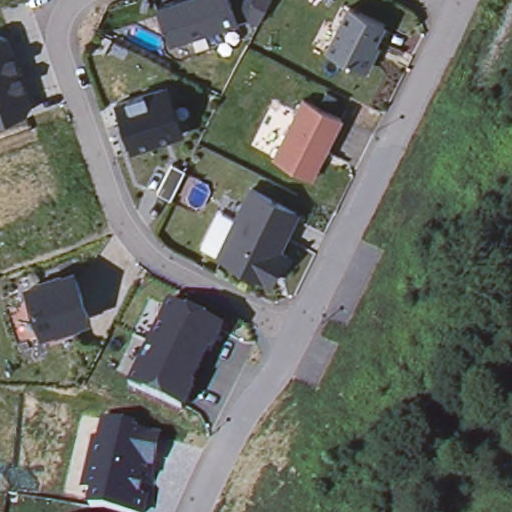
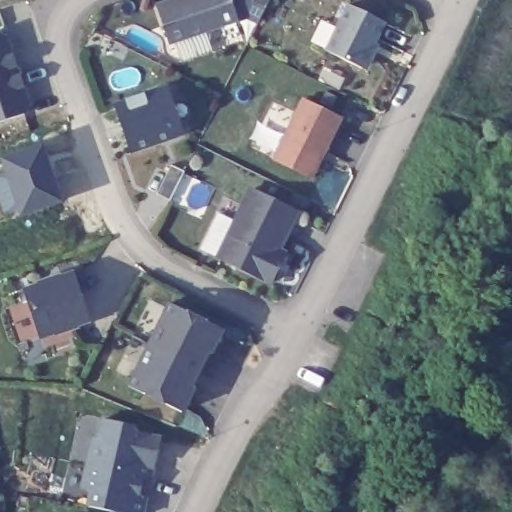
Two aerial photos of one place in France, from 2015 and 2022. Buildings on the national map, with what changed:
unchanged [(170,42),(157,4),(170,0),(231,0),(238,19),(170,42)]
unchanged [(258,21),(247,16),(238,19),(231,0),(269,0),(258,21)]
unchanged [(373,55),(369,62),(363,64),(362,66),(326,49),(349,3),(385,20),(375,41),(379,43),(373,55)]
unchanged [(33,112),(0,123),(0,38),(7,36),(33,112)]
unchanged [(162,87),(163,88),(169,86),(184,130),(178,133),(179,134),(132,150),(116,103),(162,87)]
unchanged [(274,157),(303,97),(342,116),(325,149),(312,176),(307,173),(274,157)]
new [(43,143),(63,204),(21,217),(0,155),(43,143)]
unchanged [(157,192),(172,163),(185,170),(171,199),(157,192)]
unchanged [(297,210),(279,247),(286,250),(271,281),(219,255),(202,247),(219,211),(236,219),(251,187),(297,210)]
unchanged [(89,317),(76,321),(77,324),(56,331),(55,328),(42,333),(27,289),(41,284),(41,282),(61,275),(62,277),(74,273),(89,317)]
unchanged [(149,342),(170,301),(223,327),(211,351),(207,349),(199,367),(149,342)]
unchanged [(190,384),(194,386),(182,410),(129,384),(149,342),(199,367),(190,384)]
unchanged [(144,512),(105,512),(86,508),(90,491),(83,489),(92,434),(100,435),(100,421),(161,433),(144,512)]

